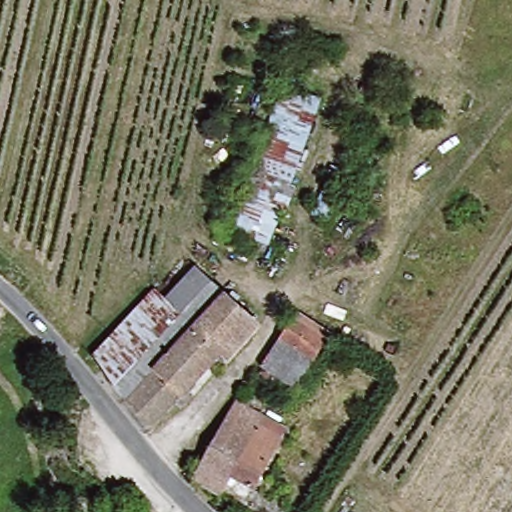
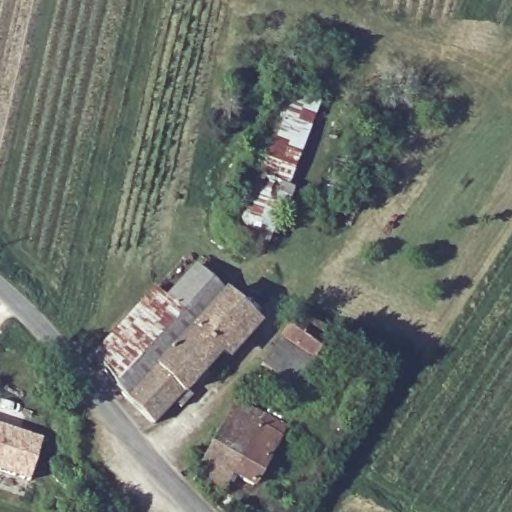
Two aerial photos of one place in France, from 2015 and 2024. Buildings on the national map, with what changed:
unchanged [(317,102),(289,177),(300,182),(291,206),(281,201),(264,242),(228,228),(279,87),(317,102)]
unchanged [(95,353),(148,288),(161,298),(189,265),(218,289),(130,385),(95,353)]
unchanged [(218,289),(249,314),(232,336),(225,331),(183,384),(190,388),(177,405),(169,400),(159,412),(130,385),(218,289)]
unchanged [(295,312),(328,333),(290,391),(255,366),(295,312)]
unchanged [(219,493),(191,482),(232,402),(255,416),(252,423),(278,436),(252,487),(229,475),(219,493)]
new [(40,437),(28,479),(0,471),(0,425),(40,437)]

